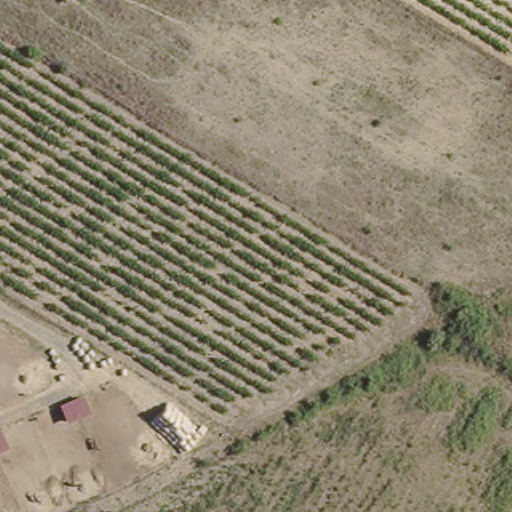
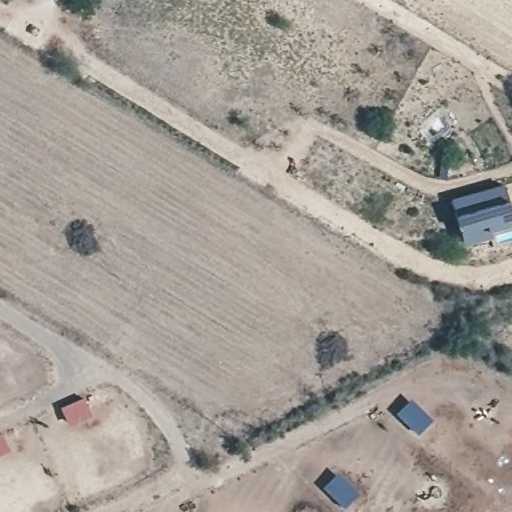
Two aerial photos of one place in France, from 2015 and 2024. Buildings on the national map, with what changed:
new [(464,243),(451,198),(503,183),(512,215),(512,223),(488,229),(490,235),(464,243)]

